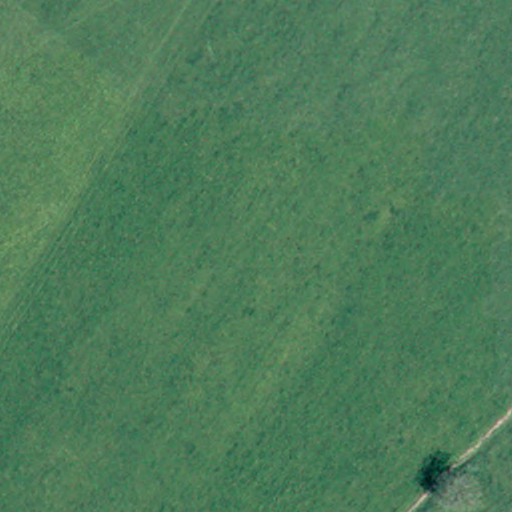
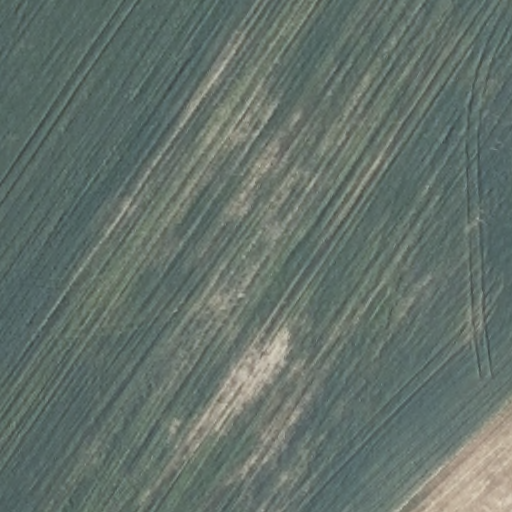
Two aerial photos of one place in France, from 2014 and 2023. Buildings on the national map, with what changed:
[]

